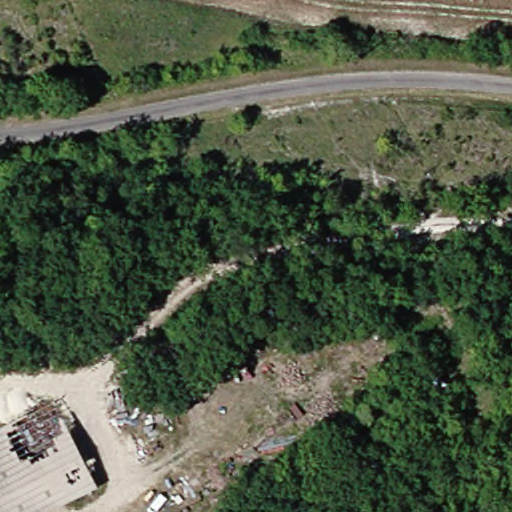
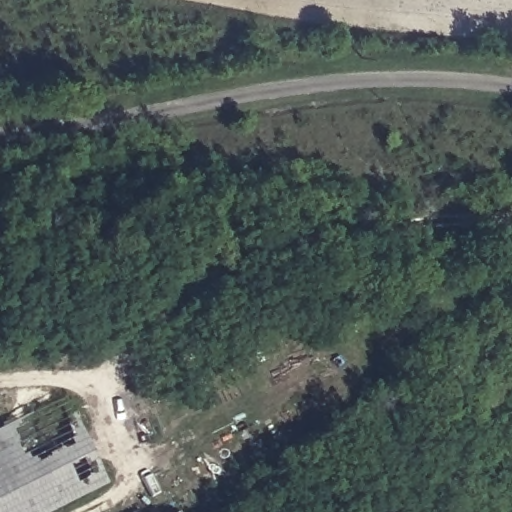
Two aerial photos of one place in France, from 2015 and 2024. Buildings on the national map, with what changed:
unchanged [(90,498),(52,512),(0,512),(0,429),(59,408),(90,498)]

